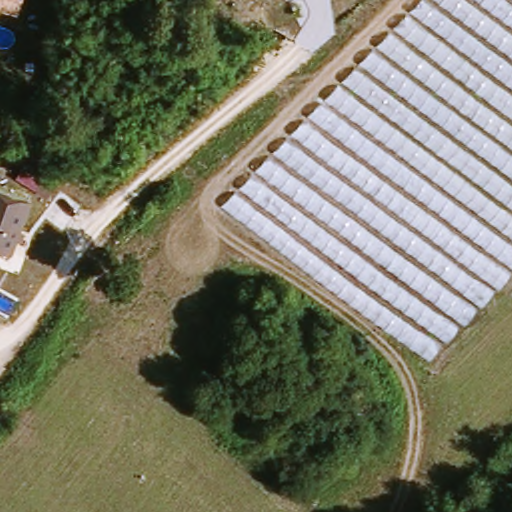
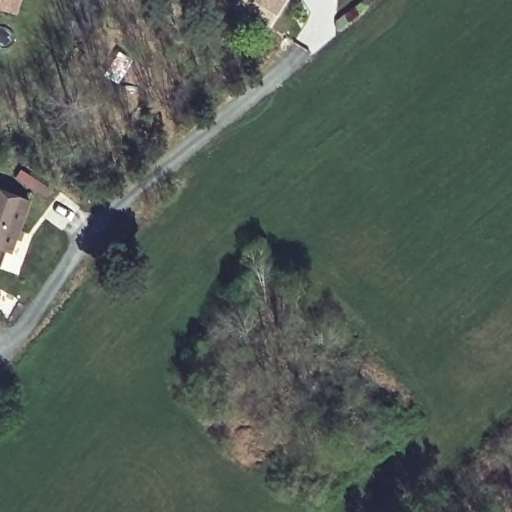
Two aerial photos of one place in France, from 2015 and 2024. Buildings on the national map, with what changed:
unchanged [(19,15),(0,11),(0,12),(0,0),(4,0),(3,1),(4,0),(23,0),(19,15)]
demolished [(423,0),(512,0),(512,297),(444,370),(224,209),(423,0)]
new [(241,0),(285,0),(287,2),(268,31),(235,9),(241,0)]
unchanged [(31,201),(15,254),(0,248),(0,191),(31,201)]

